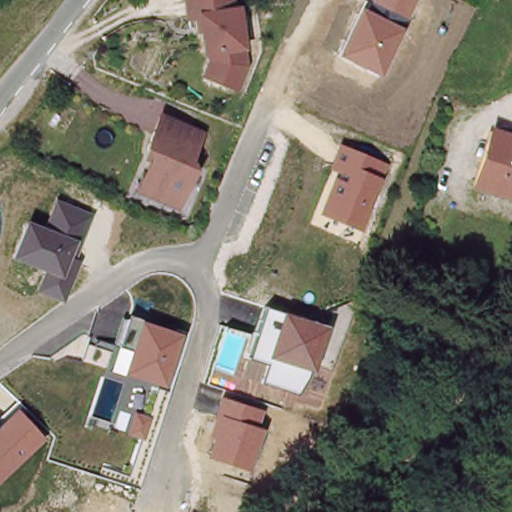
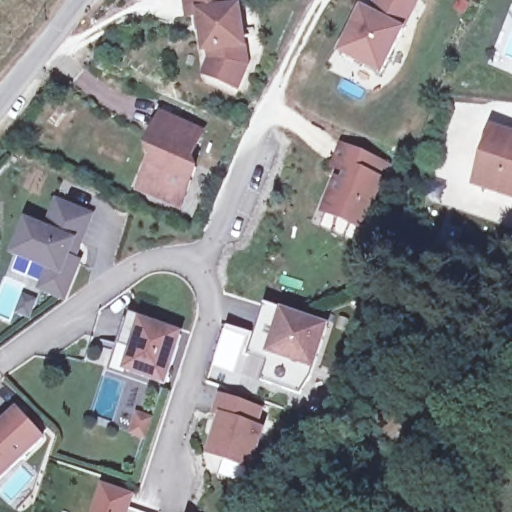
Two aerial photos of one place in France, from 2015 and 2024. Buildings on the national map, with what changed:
unchanged [(206,46),(203,20),(201,10),(191,11),(189,0),(234,0),(234,5),(239,4),(246,60),(237,82),(211,71),(205,69),(211,56),(209,46),(206,46)]
unchanged [(367,14),(374,0),(413,0),(378,72),(339,52),(359,10),(367,14)]
unchanged [(145,177),(156,152),(148,148),(162,115),(202,132),(188,164),(196,167),(178,207),(153,195),(140,189),(145,177)]
unchanged [(484,182),(501,131),(512,134),(512,190),(484,182)]
unchanged [(341,167),(332,162),(339,147),(383,166),(356,228),(321,212),(341,167)]
unchanged [(28,220),(45,227),(57,199),(90,212),(78,242),(73,240),(66,254),(78,258),(63,295),(39,286),(48,265),(14,251),(28,220)]
unchanged [(302,317),(324,325),(308,375),(296,392),(258,380),(264,362),(246,356),(253,332),(263,304),(302,317)]
unchanged [(126,314),(178,332),(162,380),(124,367),(131,347),(117,342),(126,314)]
unchanged [(218,417),(213,415),(218,397),(258,409),(252,426),(258,428),(246,466),(206,452),(218,417)]
unchanged [(39,433),(0,470),(0,419),(14,407),(39,433)]
new [(100,484),(128,493),(124,505),(146,512),(92,512),(100,484)]

